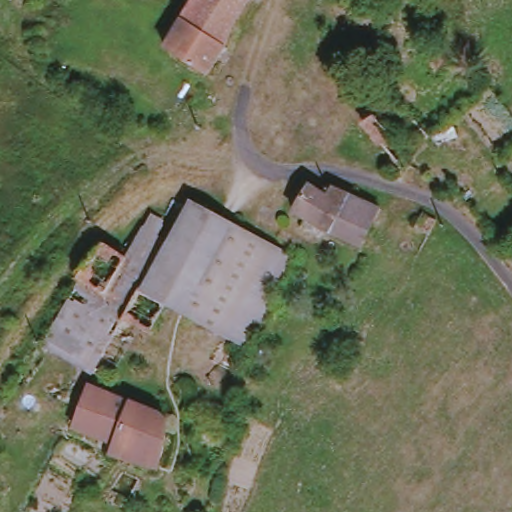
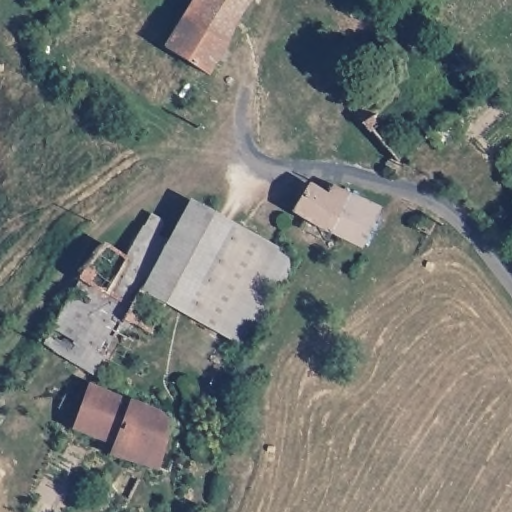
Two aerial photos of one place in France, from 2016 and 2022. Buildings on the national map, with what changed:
unchanged [(248,0),(236,15),(227,37),(206,72),(163,45),(190,0),(248,0)]
unchanged [(359,247),(291,212),(311,189),(314,188),(326,196),(335,187),(378,210),(359,247)]
unchanged [(183,317),(166,307),(142,294),(179,225),(190,206),(231,226),(183,317)]
unchanged [(142,294),(134,307),(107,297),(127,260),(153,216),(179,225),(142,294)]
unchanged [(231,226),(265,245),(215,332),(183,317),(231,226)]
unchanged [(422,256),(404,247),(414,228),(431,237),(422,256)]
unchanged [(297,262),(250,351),(215,332),(265,245),(297,262)]
unchanged [(109,452),(114,442),(73,425),(86,382),(154,412),(161,432),(155,459),(154,466),(109,452)]

